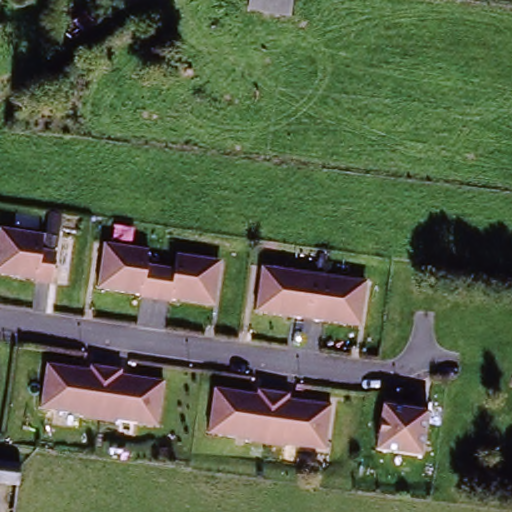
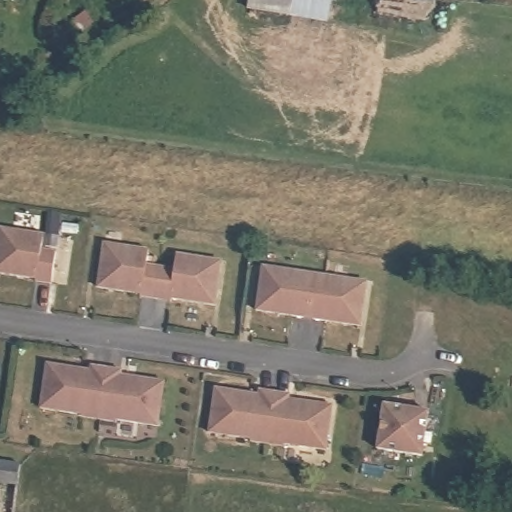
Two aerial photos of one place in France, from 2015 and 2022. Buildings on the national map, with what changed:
unchanged [(293,17),(248,11),(250,0),(295,0),(293,17)]
unchanged [(29,281),(0,277),(0,239),(6,240),(7,234),(43,238),(41,253),(55,255),(51,286),(37,285),(37,280),(29,281)]
unchanged [(103,291),(107,255),(114,256),(114,250),(150,253),(148,269),(162,271),(159,300),(146,299),(147,295),(144,295),(135,294),(103,291)]
unchanged [(211,261),(210,270),(218,271),(214,305),(184,302),(159,300),(162,271),(177,272),(179,258),(211,261)]
unchanged [(259,312),(264,276),(271,277),(272,270),(306,273),(306,278),(321,279),(319,300),(311,300),(310,311),(307,311),(303,316),(296,316),(259,312)]
unchanged [(326,320),(315,318),(313,311),(310,311),(311,300),(319,300),(321,279),(321,276),(356,279),(356,288),(362,289),(357,325),(326,320)]
unchanged [(84,419),(84,414),(45,410),(50,368),(82,372),(82,377),(90,377),(89,367),(96,368),(107,369),(100,420),(84,419)]
unchanged [(120,382),(127,382),(127,377),(163,382),(156,424),(117,419),(117,422),(100,420),(107,369),(120,370),(120,382)]
unchanged [(250,400),(257,401),(260,389),(275,391),(267,443),(251,441),(251,437),(213,432),(219,391),(251,395),(250,400)]
unchanged [(267,443),(275,391),(290,393),(289,405),(297,406),(297,402),(328,405),(322,447),(282,443),(282,445),(267,443)]
unchanged [(397,409),(429,412),(423,456),(383,451),(387,415),(395,416),(397,409)]
unchanged [(22,464),(20,484),(0,483),(0,462),(22,463),(22,464)]

